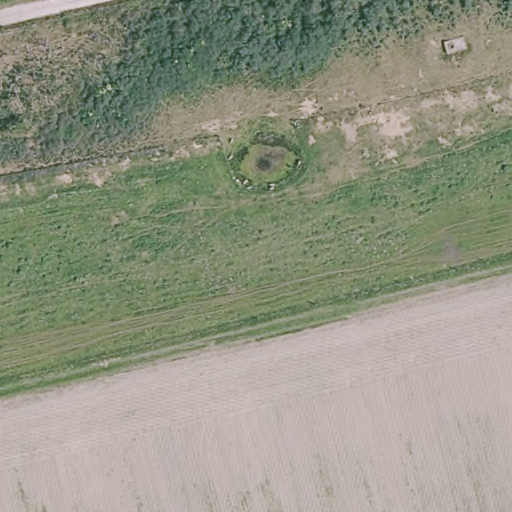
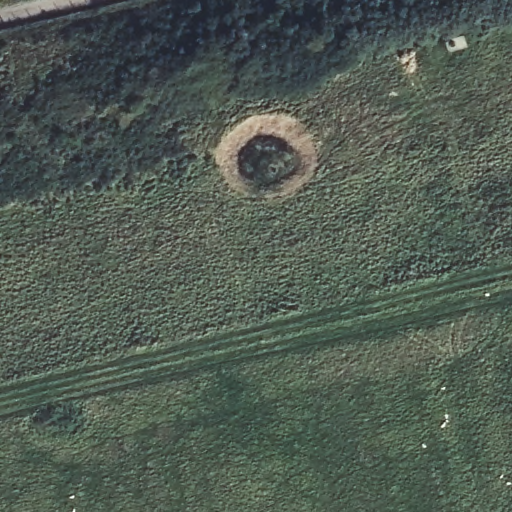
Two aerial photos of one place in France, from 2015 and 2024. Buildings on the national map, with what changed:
unchanged [(444,41),(463,35),(467,47),(448,53),(444,41)]

